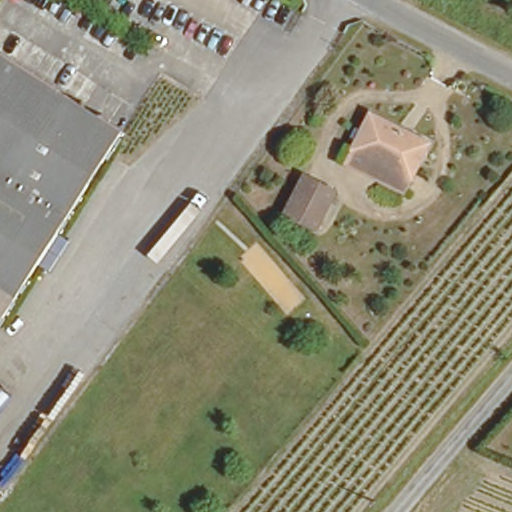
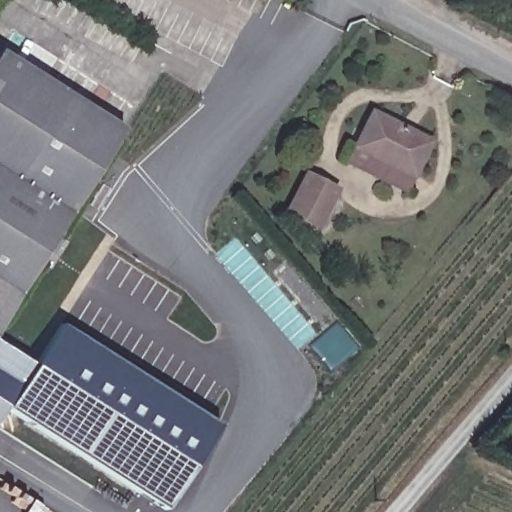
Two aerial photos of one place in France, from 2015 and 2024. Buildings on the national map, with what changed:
unchanged [(2,49),(127,125),(0,325),(0,53),(2,49)]
unchanged [(346,166),(352,152),(370,115),(429,141),(412,178),(407,190),(346,166)]
unchanged [(315,227),(285,213),(307,175),(335,190),(315,227)]
new [(57,325),(217,426),(162,510),(6,408),(0,417),(0,345),(31,364),(57,325)]

